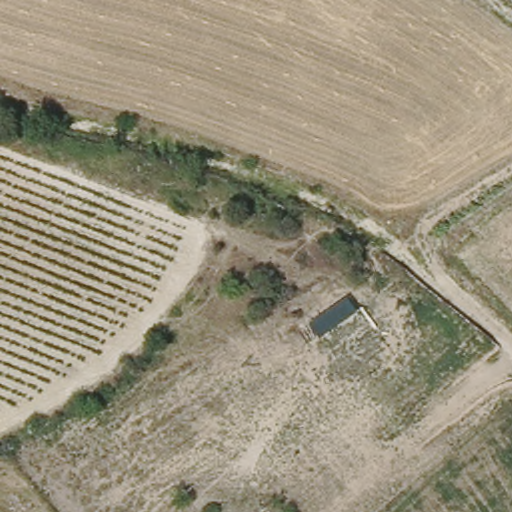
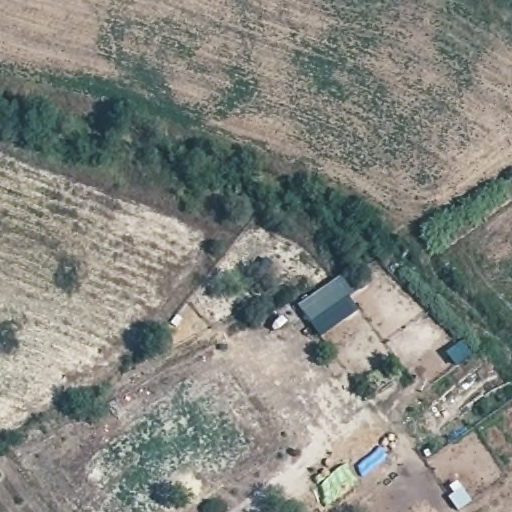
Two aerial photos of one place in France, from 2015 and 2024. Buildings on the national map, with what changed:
new [(371,284),(349,299),(359,312),(320,338),(299,305),(357,265),(371,284)]

